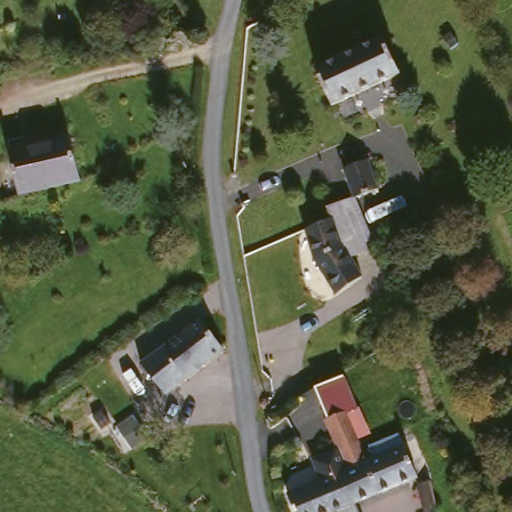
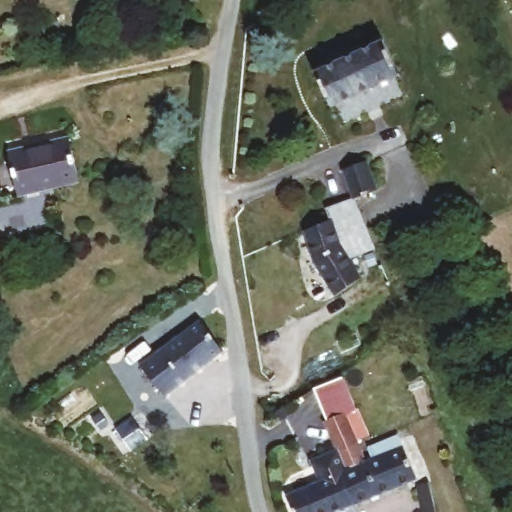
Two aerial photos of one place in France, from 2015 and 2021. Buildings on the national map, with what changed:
unchanged [(381,47),(396,80),(329,112),(312,77),(381,47)]
unchanged [(69,139),(80,184),(20,196),(10,152),(69,139)]
unchanged [(351,184),(346,169),(373,159),(374,161),(383,187),(359,195),(355,183),(351,184)]
unchanged [(377,246),(353,255),(336,212),(334,205),(359,195),(377,246)]
unchanged [(353,255),(361,277),(339,297),(320,260),(307,220),(336,212),(353,255)]
unchanged [(141,360),(204,319),(225,345),(218,351),(164,390),(160,385),(141,360)]
unchanged [(328,427),(325,420),(328,419),(316,388),(345,376),(360,417),(370,443),(358,447),(366,468),(375,465),(371,453),(399,442),(417,485),(356,509),(349,512),(293,512),(288,501),(324,486),(315,466),(340,456),(328,427)]
unchanged [(170,415),(156,423),(144,402),(156,394),(170,415)]
unchanged [(434,512),(421,512),(418,490),(430,489),(434,512)]

